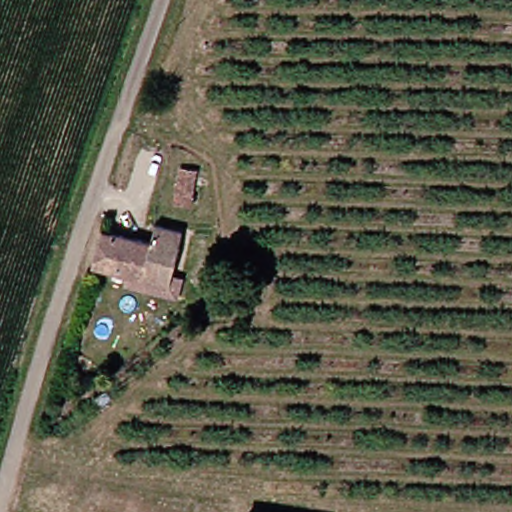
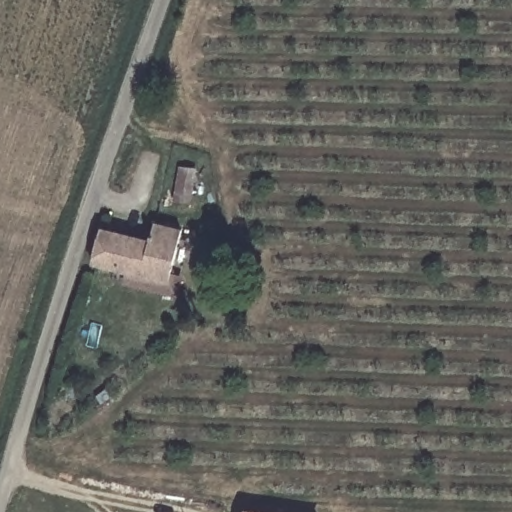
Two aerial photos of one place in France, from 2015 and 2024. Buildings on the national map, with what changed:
unchanged [(199,169),(191,203),(175,199),(184,165),(199,169)]
unchanged [(153,225),(184,235),(166,287),(87,265),(101,227),(147,244),(153,225)]
unchanged [(262,512),(245,512),(246,509),(262,512)]

